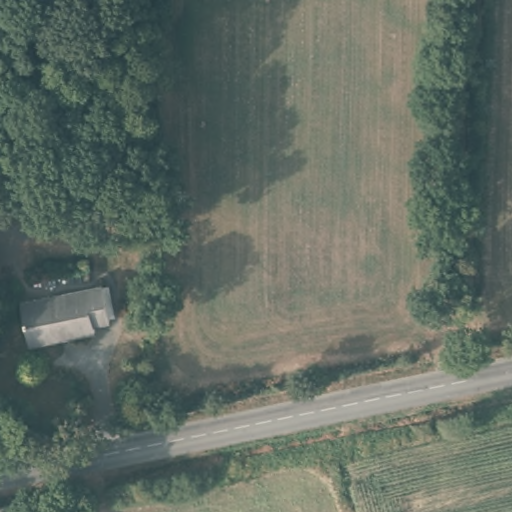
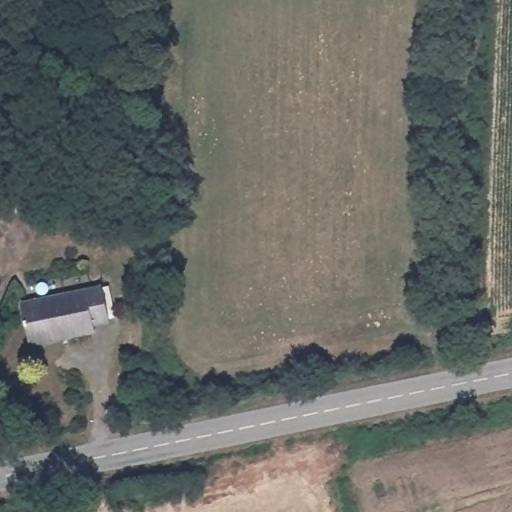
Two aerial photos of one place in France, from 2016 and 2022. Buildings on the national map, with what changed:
unchanged [(94,324),(95,331),(34,342),(26,300),(104,287),(111,321),(94,324)]

